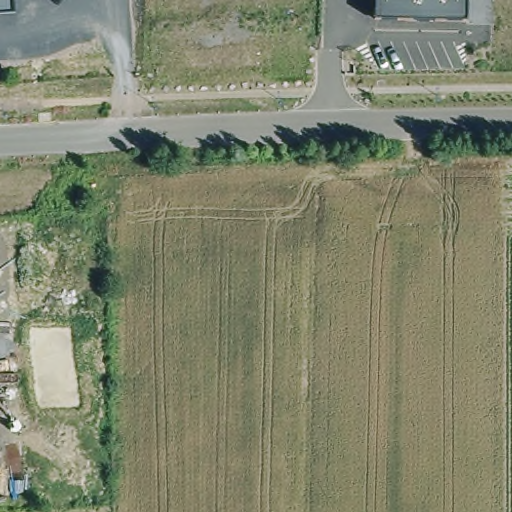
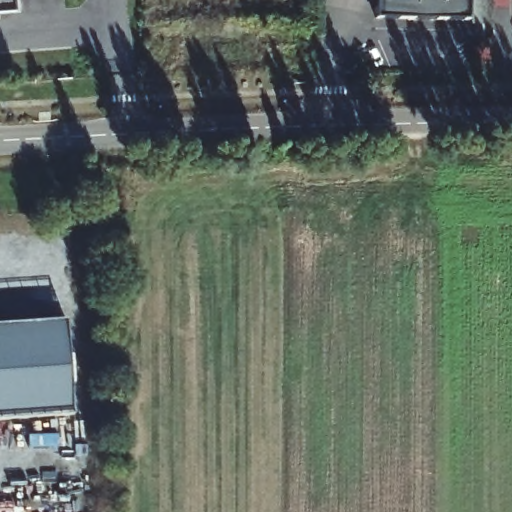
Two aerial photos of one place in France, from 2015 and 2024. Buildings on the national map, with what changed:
unchanged [(16,0),(17,15),(0,16),(0,0),(16,0)]
unchanged [(372,15),(372,0),(463,0),(463,15),(372,15)]
new [(76,317),(81,417),(0,422),(0,325),(76,317)]

